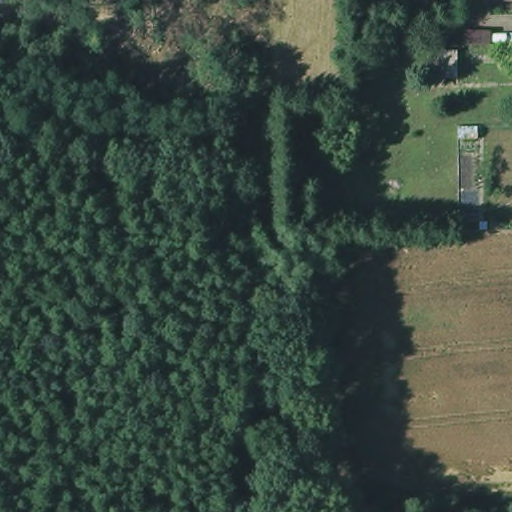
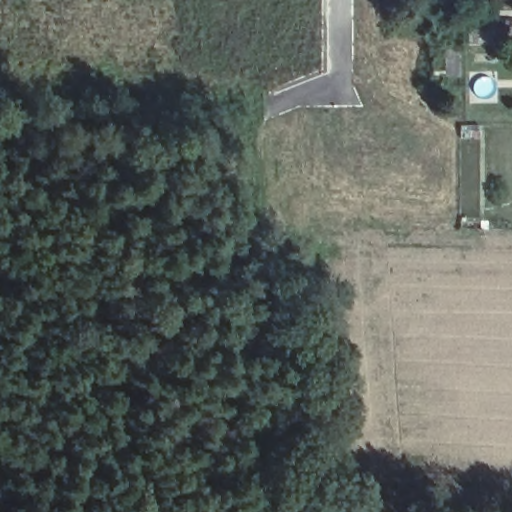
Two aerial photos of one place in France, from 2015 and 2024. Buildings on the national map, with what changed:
unchanged [(460,84),(444,85),(444,73),(444,60),(460,60),(460,66),(460,84)]

